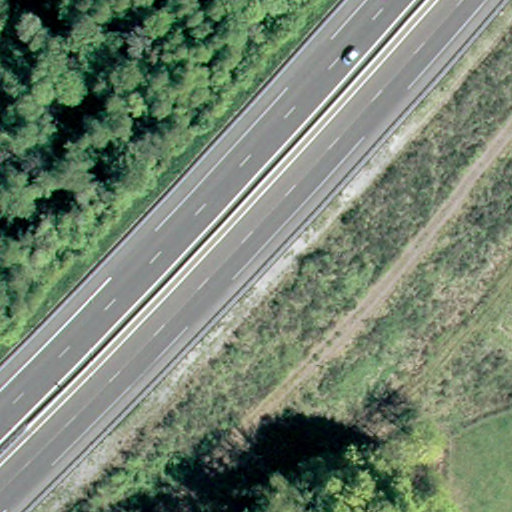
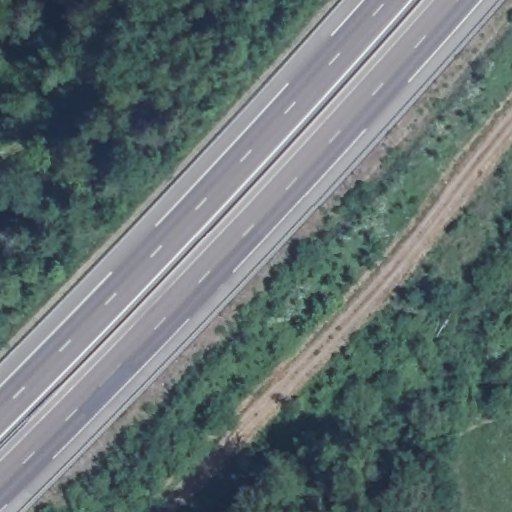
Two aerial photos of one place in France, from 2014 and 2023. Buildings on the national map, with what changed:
[]

